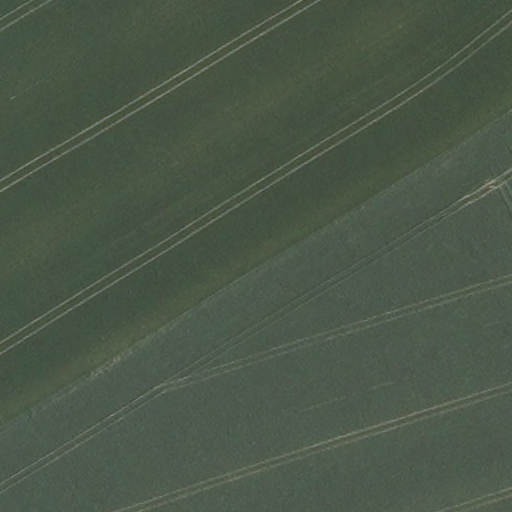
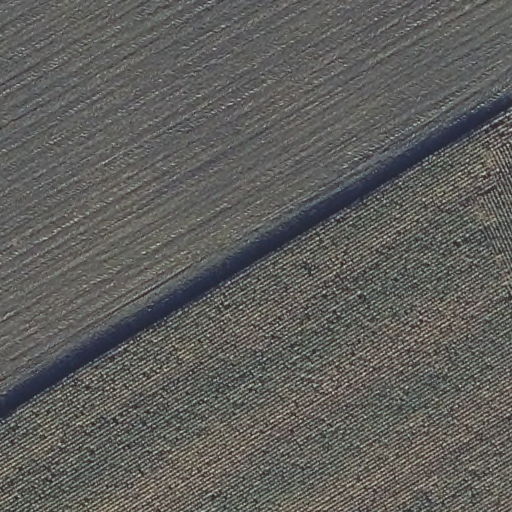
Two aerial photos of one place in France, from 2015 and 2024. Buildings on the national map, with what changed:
[]

